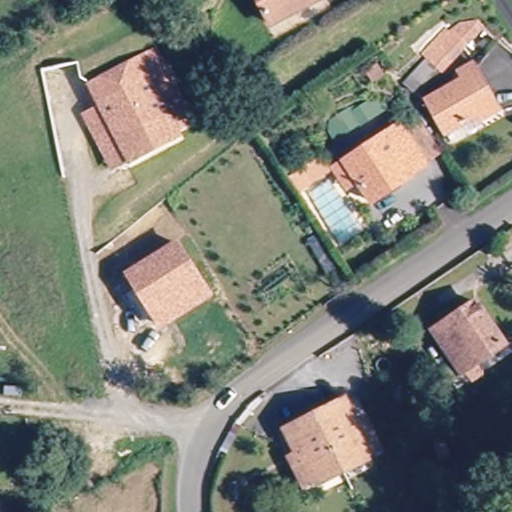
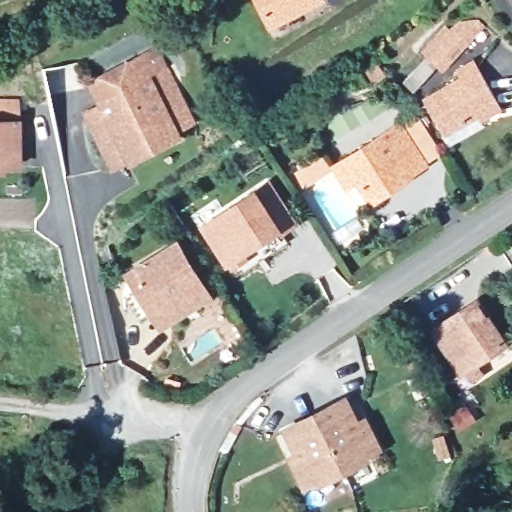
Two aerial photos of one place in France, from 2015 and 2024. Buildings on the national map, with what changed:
unchanged [(307,19),(280,34),(261,0),(319,0),(325,10),(307,19)]
unchanged [(448,25),(477,19),(485,29),(443,75),(420,55),(448,25)]
unchanged [(80,114),(97,105),(85,81),(155,47),(194,125),(181,132),(184,138),(110,175),(80,114)]
unchanged [(478,110),(443,131),(423,104),(462,79),(458,73),(470,66),(499,106),(483,116),(478,110)]
new [(323,123),(348,107),(352,112),(375,97),(384,112),(337,142),(323,123)]
new [(17,98),(17,118),(19,169),(1,168),(1,173),(0,173),(0,98),(17,98)]
unchanged [(350,165),(402,132),(431,172),(379,205),(365,187),(352,195),(337,173),(350,165)]
new [(270,178),(298,221),(231,271),(197,227),(270,178)]
unchanged [(215,297),(160,332),(122,273),(178,238),(215,297)]
unchanged [(467,306),(495,349),(453,374),(425,332),(467,306)]
unchanged [(307,481),(293,455),(298,452),(287,430),(345,400),(357,423),(365,420),(379,446),(307,481)]

